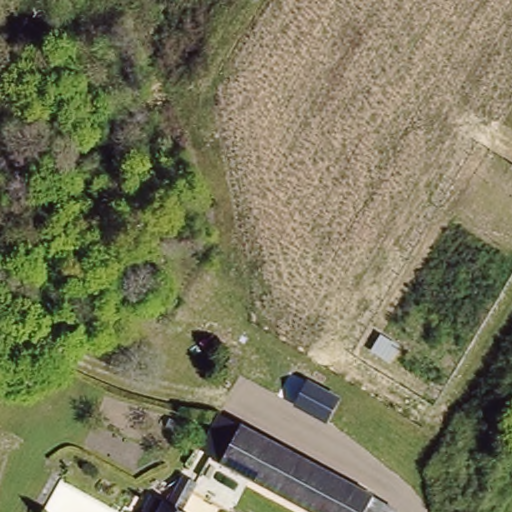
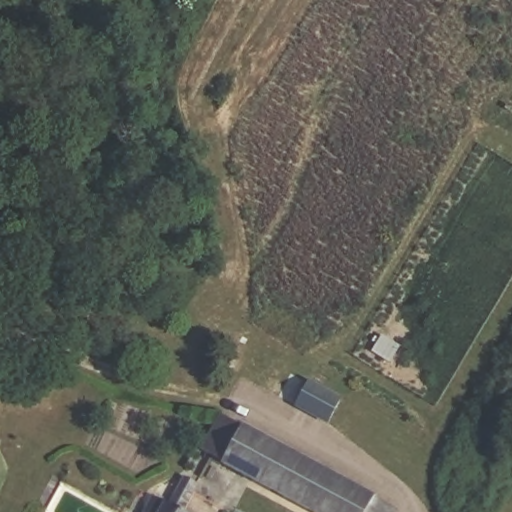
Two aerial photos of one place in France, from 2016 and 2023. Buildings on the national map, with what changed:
unchanged [(194,450),(217,414),(243,427),(374,496),(397,509),(396,512),(309,512),(225,466),(194,450)]
unchanged [(177,501),(195,474),(210,484),(190,512),(163,512),(173,497),(177,501)]
unchanged [(154,512),(149,512),(150,511),(154,512)]

